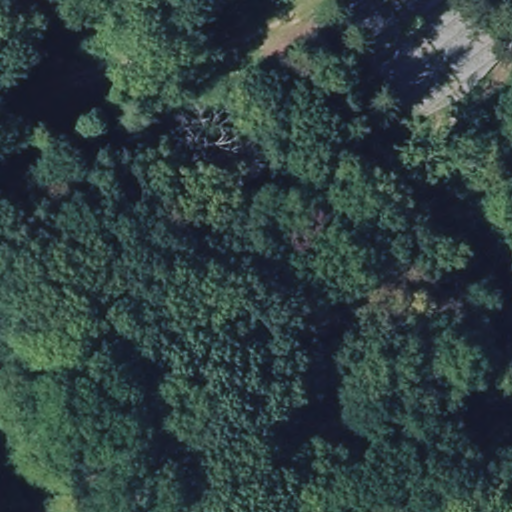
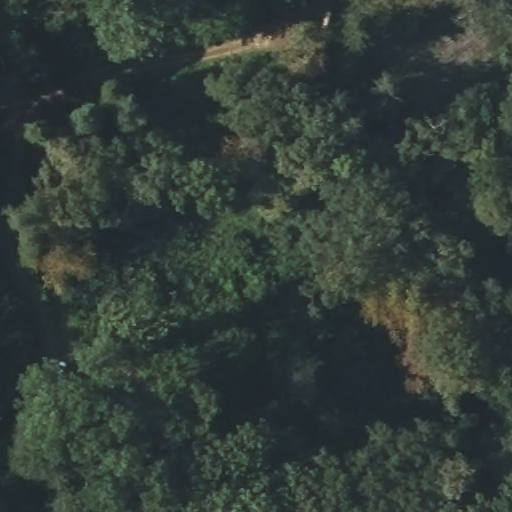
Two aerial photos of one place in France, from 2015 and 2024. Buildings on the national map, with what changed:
[]

